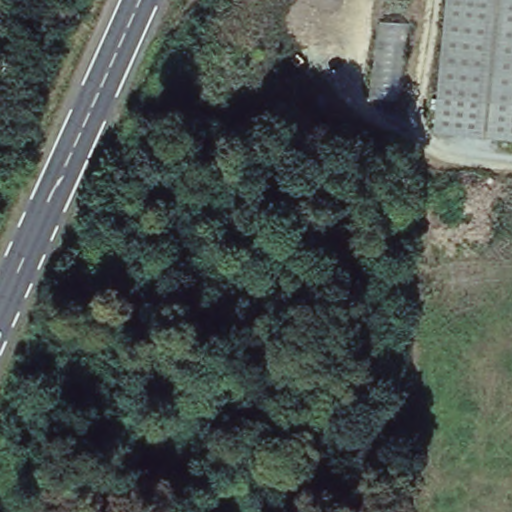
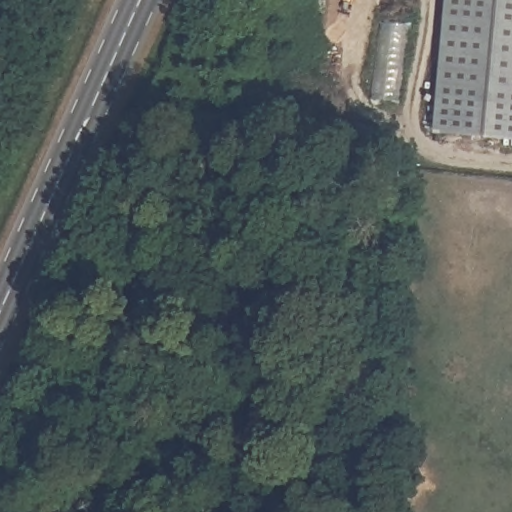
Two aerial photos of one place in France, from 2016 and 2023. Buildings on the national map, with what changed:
unchanged [(512,0),(512,141),(434,130),(445,0),(512,0)]

